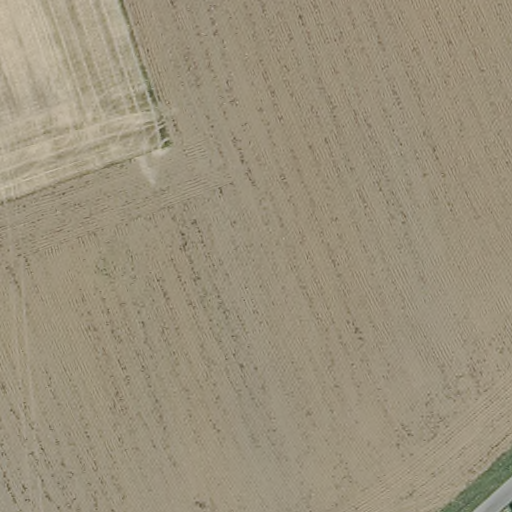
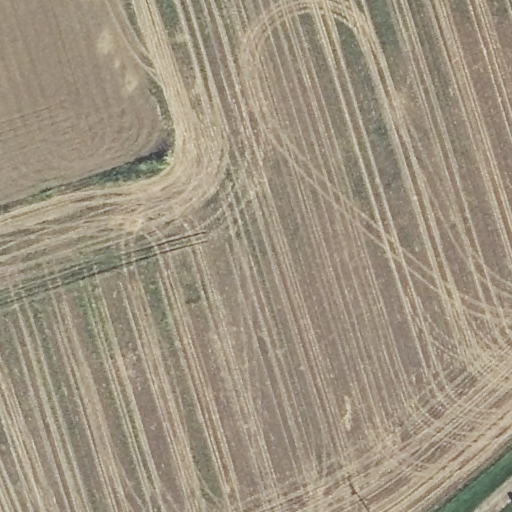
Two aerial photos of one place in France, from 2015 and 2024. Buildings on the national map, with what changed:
[]

